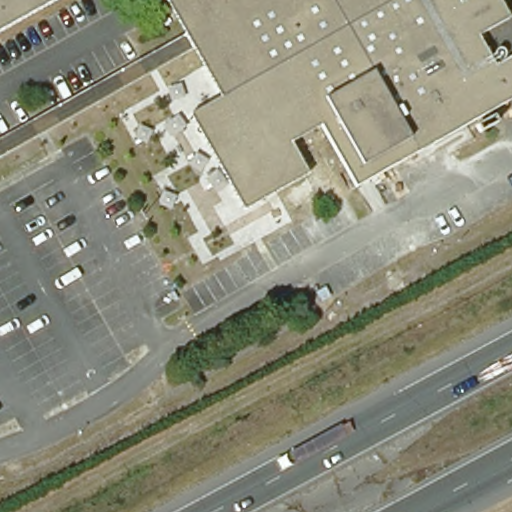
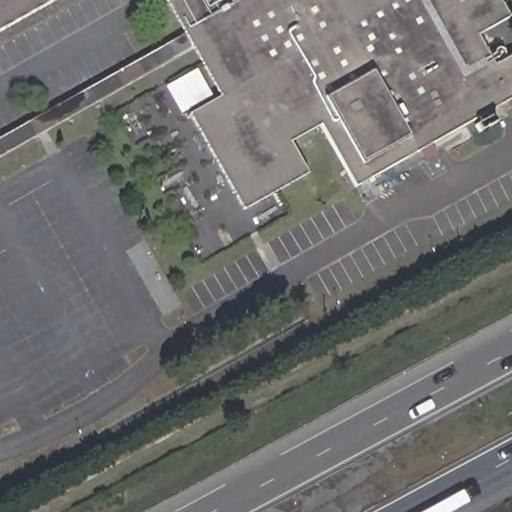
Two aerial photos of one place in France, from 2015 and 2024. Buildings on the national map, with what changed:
unchanged [(0,30),(0,0),(52,0),(0,30)]
unchanged [(457,1),(461,0),(495,0),(504,16),(475,34),(494,64),(512,55),(512,95),(350,186),(315,128),(287,143),(302,174),(241,207),(189,113),(217,97),(187,46),(179,32),(161,0),(457,0),(457,1)]
unchanged [(179,32),(187,46),(0,154),(0,135),(179,32)]

